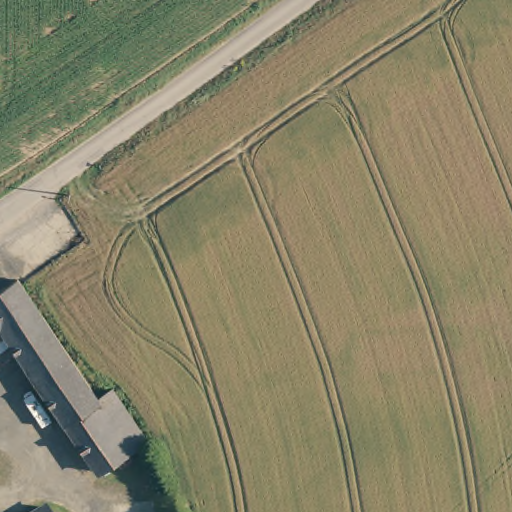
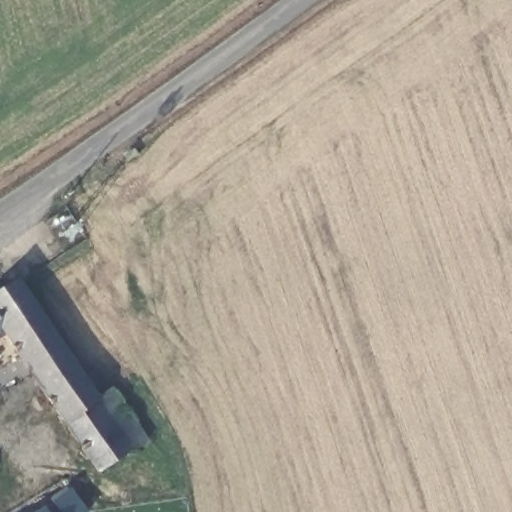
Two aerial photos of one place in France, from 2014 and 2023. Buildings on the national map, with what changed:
unchanged [(7,332),(0,337),(0,282),(14,273),(106,397),(118,388),(149,434),(153,439),(135,450),(105,471),(7,332)]

